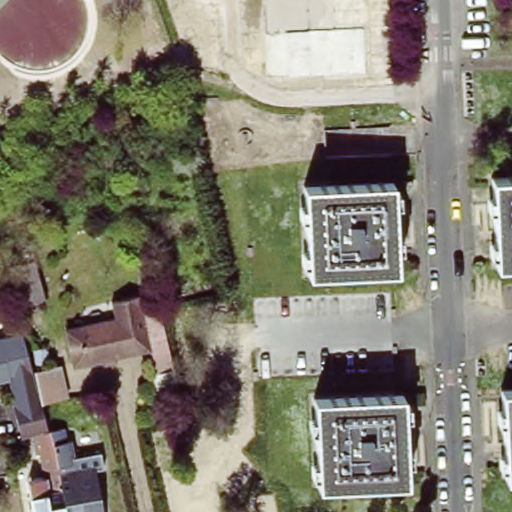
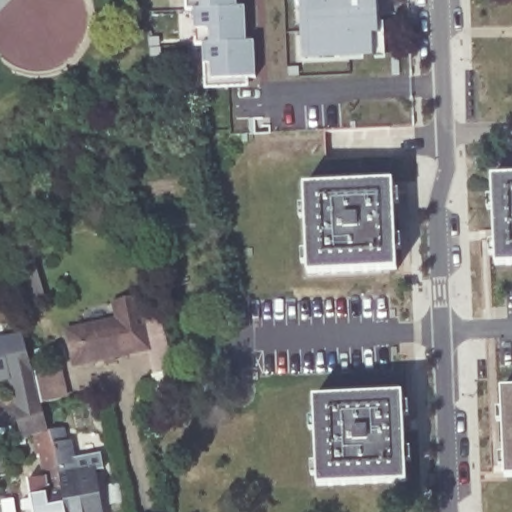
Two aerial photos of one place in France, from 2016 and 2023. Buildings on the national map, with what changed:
new [(236,6),(243,5),(245,41),(253,40),(254,76),(246,77),(247,87),(203,88),(202,62),(201,43),(194,43),(192,27),(191,8),(184,10),(184,0),(236,0),(236,6)]
demolished [(266,78),(263,0),(308,0),(309,30),(363,29),(365,73),(266,78)]
new [(302,60),(299,0),(377,0),(379,34),(373,34),(373,56),(302,60)]
unchanged [(496,261),(492,174),(512,174),(512,261),(496,261)]
unchanged [(397,267),(308,270),(305,182),(393,179),(396,257),(397,267)]
unchanged [(114,317),(110,301),(136,295),(140,309),(148,345),(75,363),(66,328),(114,317)]
unchanged [(31,440),(20,442),(6,376),(0,377),(0,338),(20,333),(21,338),(40,401),(42,408),(44,418),(46,428),(57,427),(60,440),(64,440),(66,456),(95,452),(97,466),(87,468),(95,512),(60,512),(49,449),(47,438),(31,440)]
unchanged [(501,388),(512,388),(512,475),(505,475),(501,388)]
unchanged [(317,484),(313,397),(401,393),(405,480),(317,484)]
unchanged [(38,475),(34,451),(49,449),(60,512),(26,512),(21,478),(38,475)]

